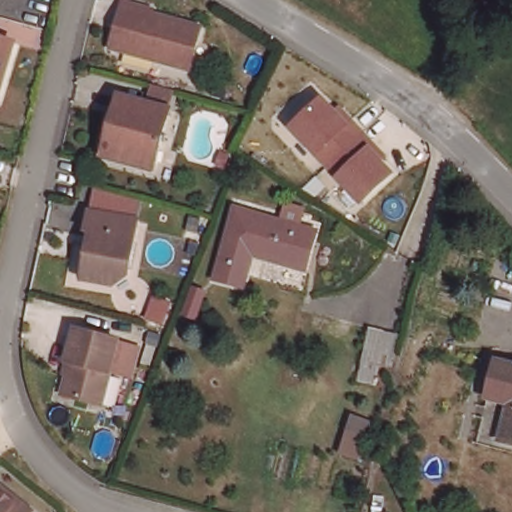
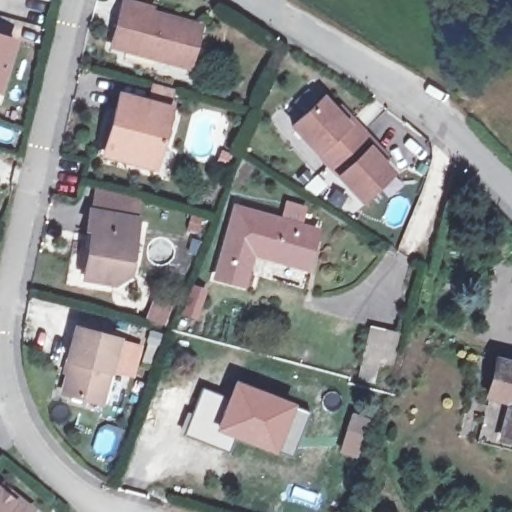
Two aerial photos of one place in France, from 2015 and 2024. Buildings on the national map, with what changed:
unchanged [(124,0),(132,0),(152,5),(152,9),(202,22),(191,66),(112,44),(124,0)]
unchanged [(0,95),(0,35),(20,40),(3,96),(0,95)]
unchanged [(102,140),(116,89),(150,98),(154,81),(172,86),(167,103),(152,161),(124,154),(100,147),(102,140)]
unchanged [(363,205),(289,126),(325,94),(338,108),(342,104),(387,154),(383,157),(397,173),(363,205)]
unchanged [(247,253),(237,283),(214,276),(234,207),(307,229),(297,267),(247,253)]
unchanged [(126,274),(109,284),(80,279),(87,230),(82,229),(86,210),(135,219),(126,274)]
unchanged [(392,366),(381,363),(376,384),(361,380),(374,327),(387,331),(388,329),(400,333),(392,366)]
unchanged [(64,396),(72,364),(69,363),(77,329),(121,342),(143,348),(136,380),(112,373),(104,406),(64,396)]
unchanged [(512,370),(512,445),(492,441),(500,406),(480,401),(486,364),(512,370)]
new [(292,456),(278,451),(277,454),(234,439),(215,430),(226,396),(234,379),(281,397),(295,405),(309,411),(292,456)]
new [(202,387),(226,396),(215,430),(234,439),(229,451),(182,434),(202,387)]
unchanged [(344,452),(346,407),(370,412),(365,453),(344,452)]
unchanged [(10,491),(28,506),(23,512),(0,512),(0,489),(7,495),(10,491)]

